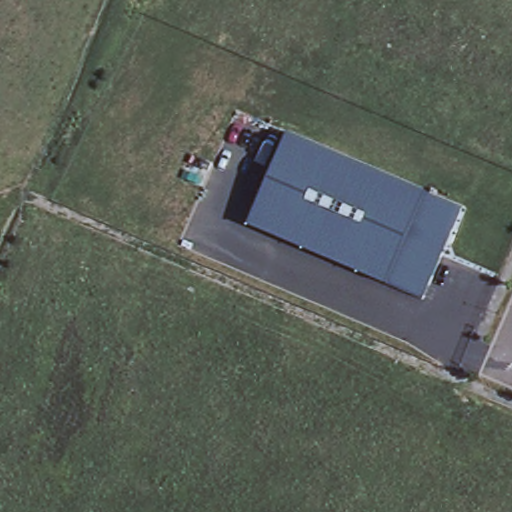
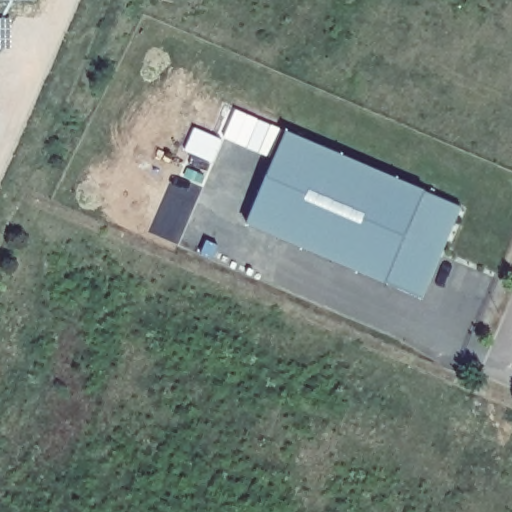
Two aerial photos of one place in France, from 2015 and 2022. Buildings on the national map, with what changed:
unchanged [(465,208),(425,302),(247,224),(287,133),(465,208)]

